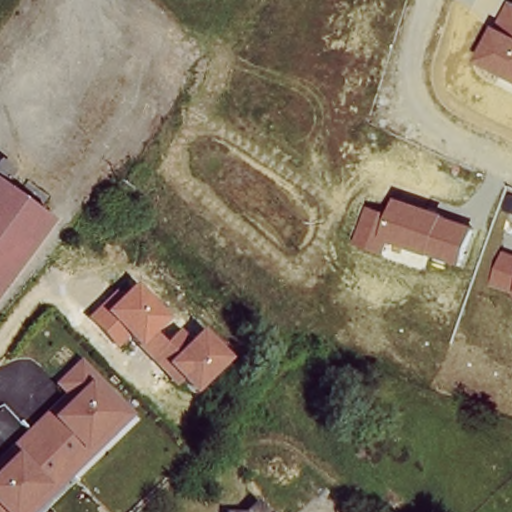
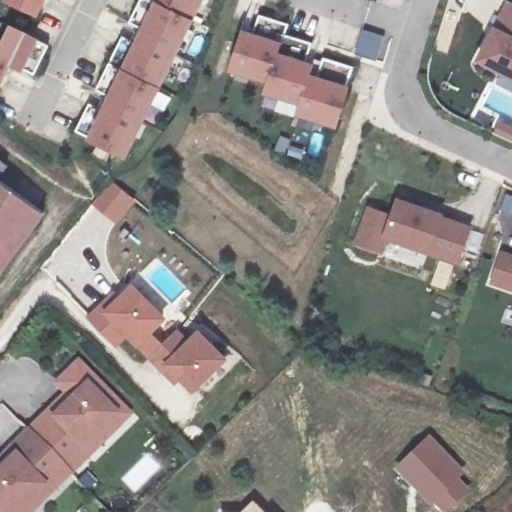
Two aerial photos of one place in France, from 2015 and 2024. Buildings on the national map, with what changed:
new [(40,0),(30,22),(0,7),(4,0),(40,0)]
new [(65,0),(70,0),(69,2),(65,0)]
new [(70,139),(83,111),(96,116),(103,103),(91,97),(117,44),(130,51),(137,36),(124,29),(137,4),(150,10),(155,0),(198,0),(118,162),(70,139)]
unchanged [(507,3),(512,6),(512,79),(478,62),(507,3)]
new [(255,27),(260,16),(288,24),(284,36),(311,44),(305,61),(313,64),(310,74),(317,75),(322,58),(351,68),(345,85),(351,86),(337,127),(296,114),(300,103),(263,92),(267,82),(230,71),(242,29),(243,23),(255,27)]
new [(6,36),(41,53),(27,82),(2,70),(0,76),(0,50),(6,36)]
unchanged [(7,167),(0,177),(0,161),(7,167)]
unchanged [(46,214),(0,279),(0,183),(46,214)]
unchanged [(460,263),(391,239),(385,253),(357,244),(369,206),(394,214),(400,196),(472,225),(460,263)]
unchanged [(503,250),(512,253),(512,292),(493,283),(503,250)]
unchanged [(196,396),(182,381),(176,388),(127,337),(117,348),(88,317),(117,286),(126,293),(135,285),(190,340),(201,330),(229,359),(196,396)]
unchanged [(134,416),(37,512),(0,512),(0,463),(6,456),(2,452),(43,411),(48,417),(66,399),(52,385),(80,359),(134,416)]
new [(432,434),(468,471),(462,478),(472,487),(447,512),(446,512),(436,501),(433,504),(396,467),(432,434)]
unchanged [(225,508),(250,510),(253,512),(225,512),(225,508)]

